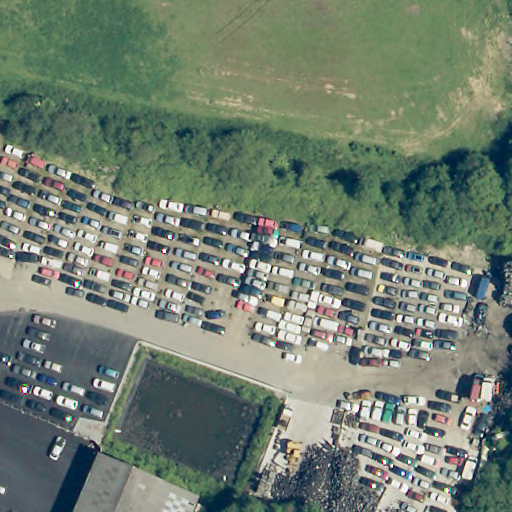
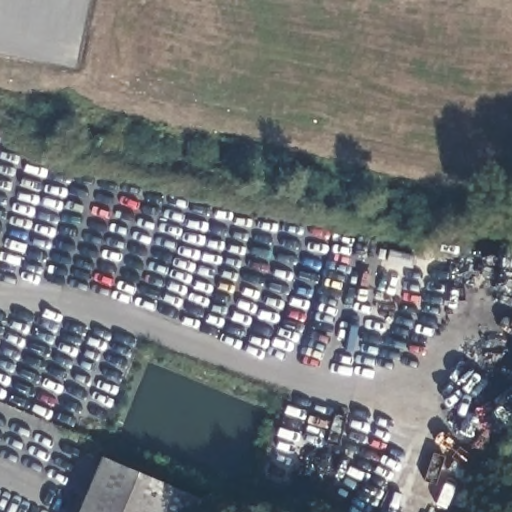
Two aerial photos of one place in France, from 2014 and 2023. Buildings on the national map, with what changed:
unchanged [(201,495),(194,512),(79,512),(104,454),(201,495)]

